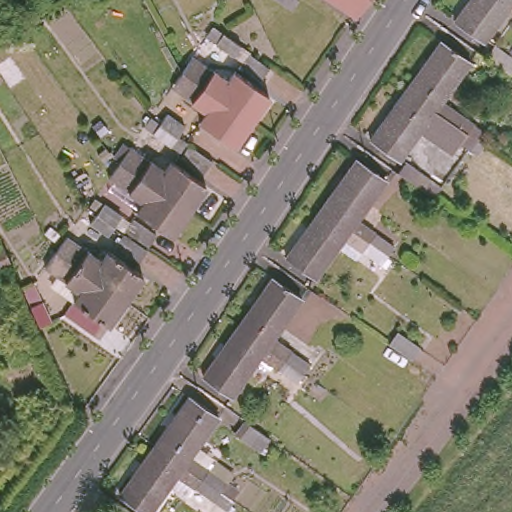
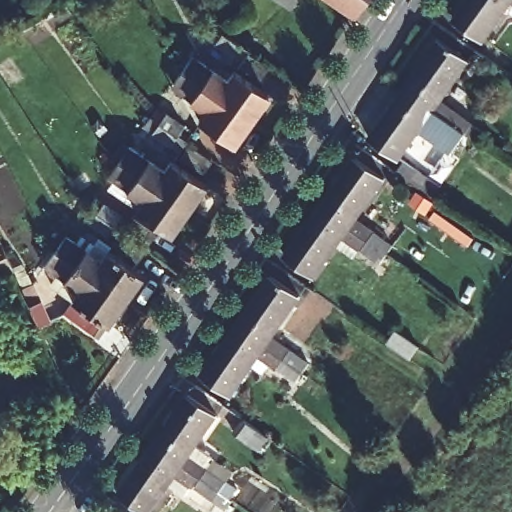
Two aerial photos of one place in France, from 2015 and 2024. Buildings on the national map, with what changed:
unchanged [(356,11),(340,0),(364,0),(356,11)]
unchanged [(481,36),(451,15),(463,0),(507,0),(481,36)]
unchanged [(402,84),(437,35),(467,57),(438,96),(448,103),(477,125),(471,134),(402,84)]
unchanged [(237,48),(231,56),(215,44),(220,36),(237,48)]
unchanged [(272,64),(261,77),(242,64),(253,50),(272,64)]
unchanged [(194,54),(230,78),(236,70),(270,94),(253,117),(183,69),(194,54)]
unchanged [(253,117),(235,142),(201,119),(208,109),(172,84),(183,69),(253,117)]
unchanged [(465,144),(435,121),(425,115),(396,155),(367,133),(402,84),(471,134),(465,144)]
unchanged [(150,135),(156,125),(163,115),(180,128),(173,137),(166,147),(150,135)]
unchanged [(126,142),(161,167),(167,159),(201,183),(185,206),(115,157),(126,142)]
unchanged [(208,160),(200,171),(176,155),(185,143),(208,160)]
unchanged [(317,202),(352,152),(382,174),(354,212),(365,220),(393,242),(386,252),(317,202)]
unchanged [(185,206),(166,232),(132,209),(140,199),(105,172),(115,157),(185,206)]
unchanged [(380,261),(350,240),(340,232),(312,272),(282,251),(317,202),(386,252),(380,261)]
unchanged [(86,225),(93,215),(100,205),(117,218),(110,227),(103,237),(86,225)]
unchanged [(152,233),(143,245),(119,229),(128,215),(152,233)]
unchanged [(68,232),(103,257),(110,248),(144,272),(126,296),(57,247),(68,232)]
unchanged [(108,323),(75,298),(81,289),(47,264),(46,263),(57,247),(126,296),(108,323)]
unchanged [(6,263),(9,270),(0,274),(0,250),(6,263)]
unchanged [(273,348),(234,321),(269,271),(298,292),(270,331),(280,338),(309,359),(302,367),(273,348)]
unchanged [(46,325),(36,330),(27,311),(37,306),(46,325)]
unchanged [(90,320),(80,332),(61,318),(70,306),(90,320)]
unchanged [(295,377),(267,357),(257,350),(228,391),(200,370),(234,321),(273,348),(302,367),(295,377)]
unchanged [(416,353),(408,365),(385,348),(393,337),(416,353)]
unchanged [(151,440),(186,390),(215,411),(186,450),(196,457),(225,478),(218,487),(151,440)]
unchanged [(212,496),(183,476),(173,470),(145,510),(116,490),(151,440),(218,487),(212,496)]

